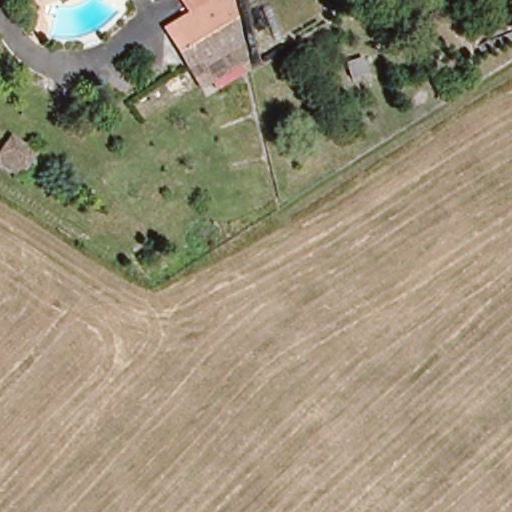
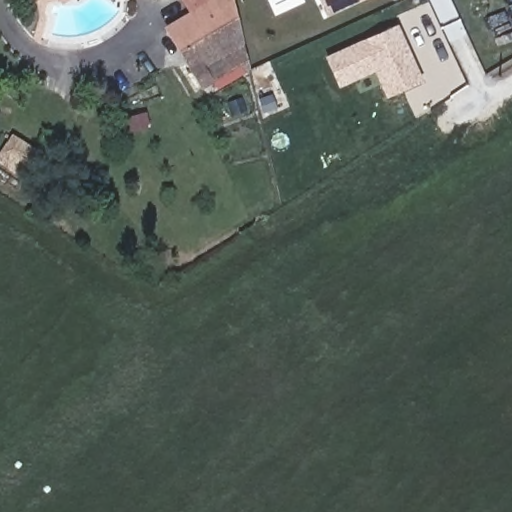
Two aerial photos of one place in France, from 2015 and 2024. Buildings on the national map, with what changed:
unchanged [(188,12),(181,0),(230,0),(243,57),(244,60),(208,82),(195,90),(187,76),(190,74),(186,66),(177,51),(163,28),(188,12)]
new [(319,0),(363,0),(326,16),(319,0)]
new [(424,82),(386,99),(376,72),(339,88),(325,56),(399,24),(424,82)]

